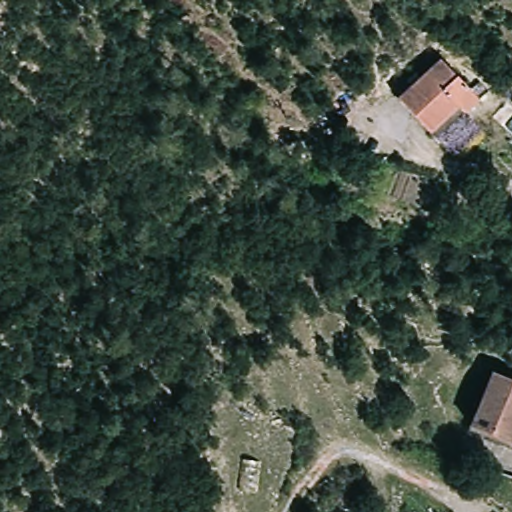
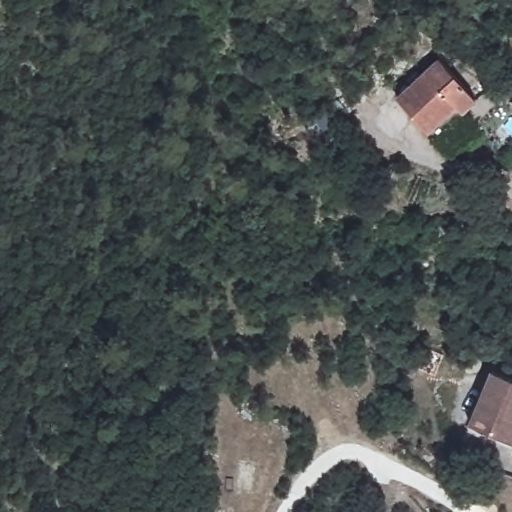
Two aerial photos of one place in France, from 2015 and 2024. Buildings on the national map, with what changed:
unchanged [(436,129),(399,105),(429,57),(477,88),(466,105),(446,135),(436,129)]
unchanged [(467,416),(498,365),(512,373),(512,443),(467,416)]

